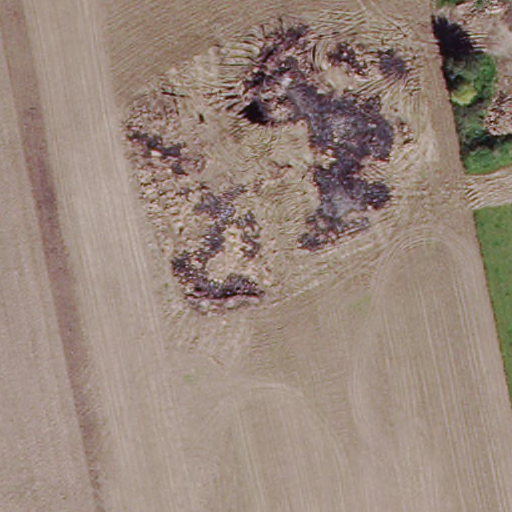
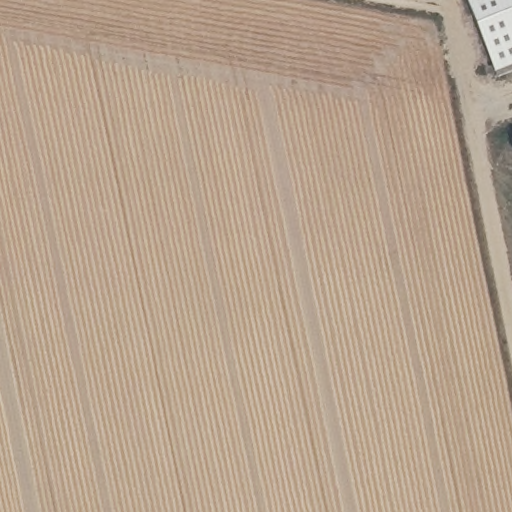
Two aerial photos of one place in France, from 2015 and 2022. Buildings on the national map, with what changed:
new [(512,72),(498,78),(466,0),(512,0),(512,72)]

